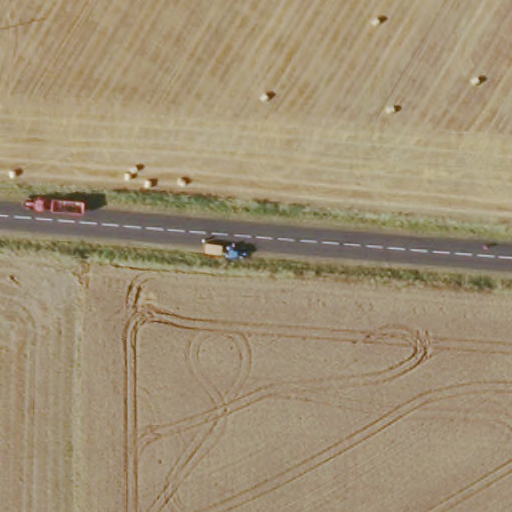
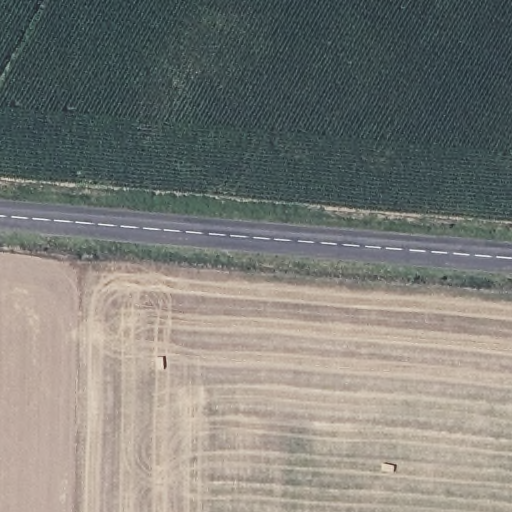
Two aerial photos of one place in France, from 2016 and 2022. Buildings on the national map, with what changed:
[]

